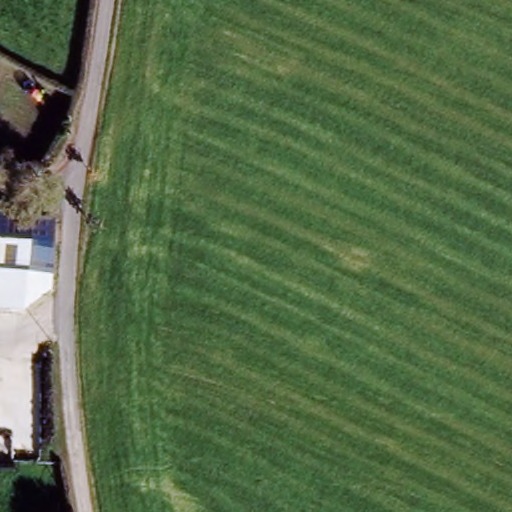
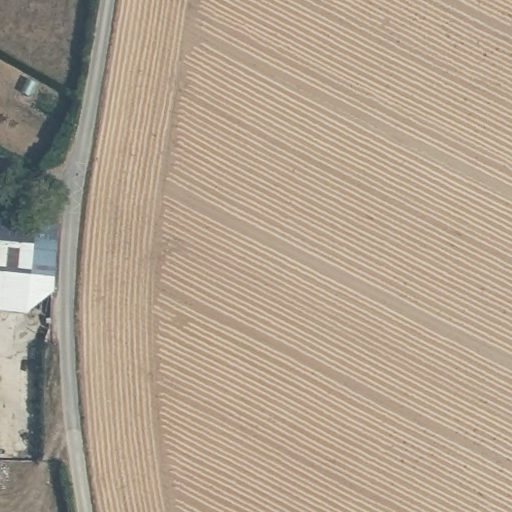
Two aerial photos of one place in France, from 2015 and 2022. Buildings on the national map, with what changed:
unchanged [(0,245),(21,250),(9,316),(0,314),(0,245)]
unchanged [(45,255),(37,300),(9,316),(21,250),(28,251),(45,255)]

